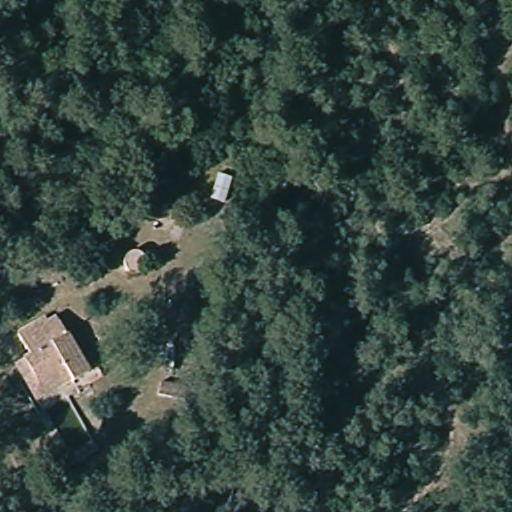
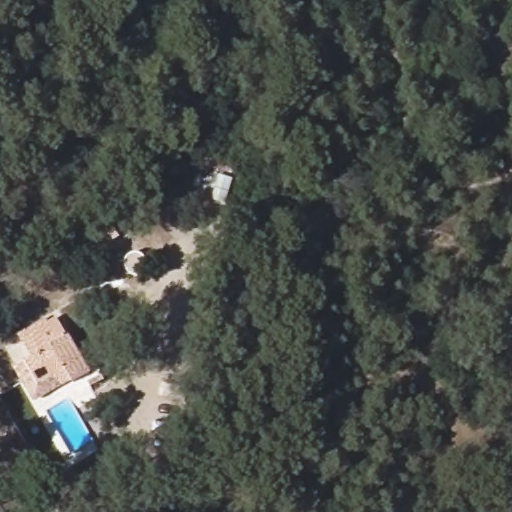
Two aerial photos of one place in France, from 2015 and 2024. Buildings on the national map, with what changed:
unchanged [(53,309),(89,371),(73,381),(70,377),(37,397),(15,362),(30,353),(16,331),(53,309)]

